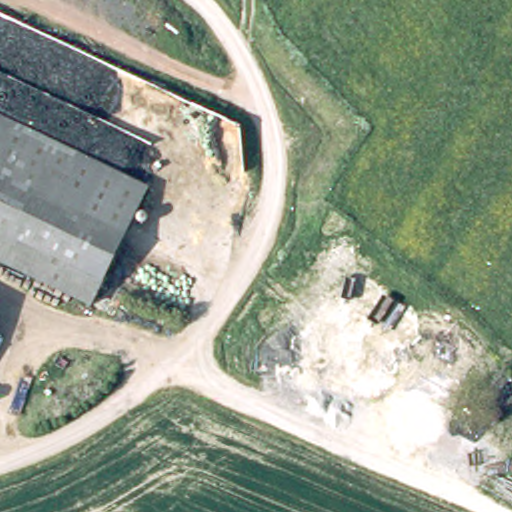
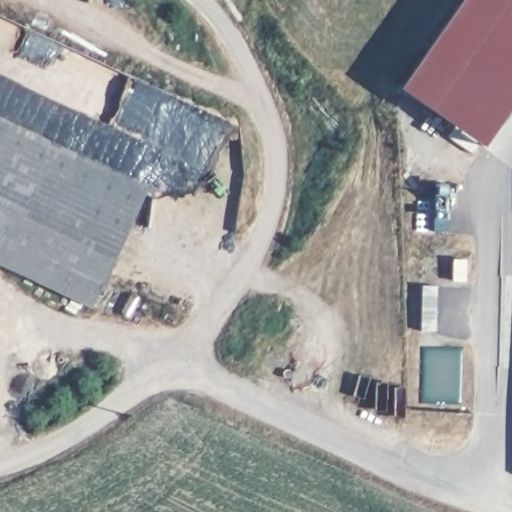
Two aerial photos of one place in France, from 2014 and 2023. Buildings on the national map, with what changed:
new [(512,0),(512,102),(482,146),(400,89),(461,0),(512,0)]
unchanged [(94,307),(0,262),(0,117),(150,188),(94,307)]
new [(434,184),(449,184),(447,232),(432,232),(434,184)]
new [(422,286),(436,286),(435,332),(421,331),(422,286)]

